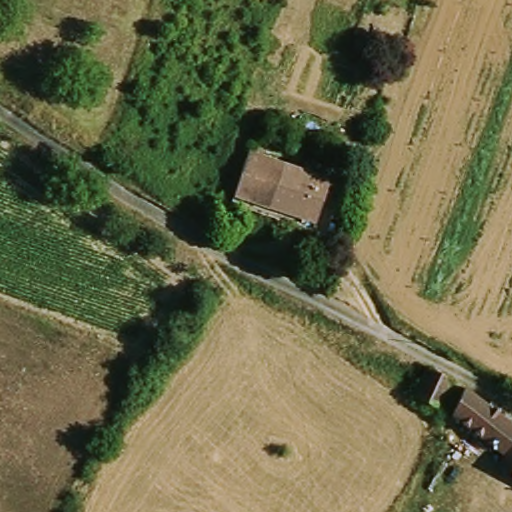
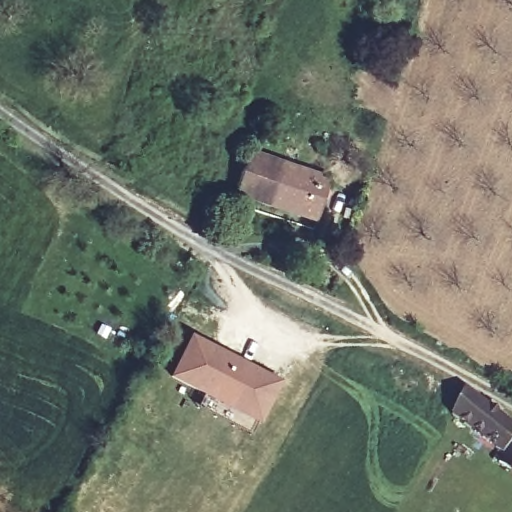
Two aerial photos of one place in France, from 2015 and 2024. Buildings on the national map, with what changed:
unchanged [(313,227),(235,193),(250,149),(332,189),(313,227)]
new [(260,424),(169,378),(192,334),(283,382),(260,424)]
unchanged [(448,388),(433,417),(409,404),(423,376),(448,388)]
unchanged [(499,452),(453,419),(469,392),(510,419),(512,421),(512,433),(499,452)]
unchanged [(499,467),(512,449),(512,476),(499,467)]

